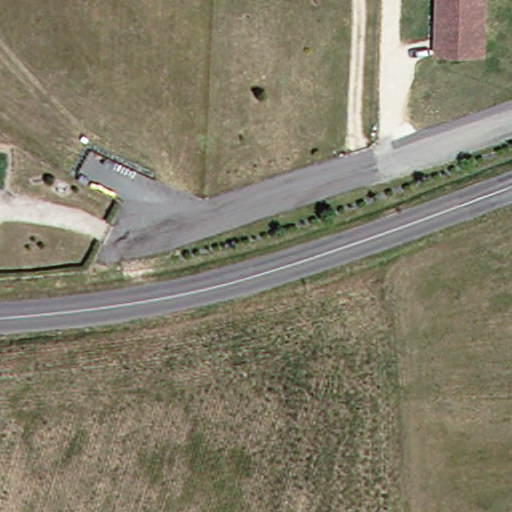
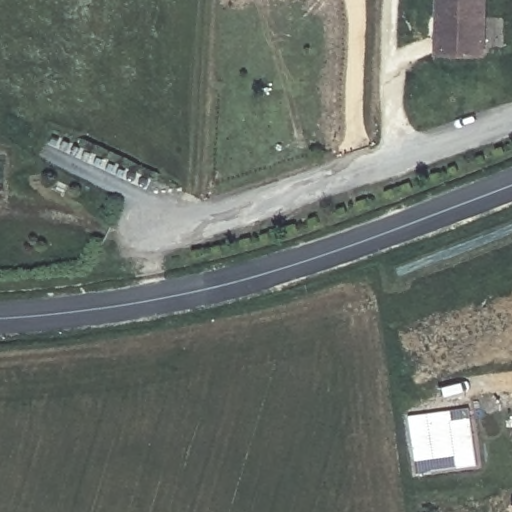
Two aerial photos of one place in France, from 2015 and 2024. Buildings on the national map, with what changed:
unchanged [(485,60),(438,59),(440,0),(487,0),(485,60)]
new [(409,415),(469,407),(477,466),(418,472),(409,415)]

